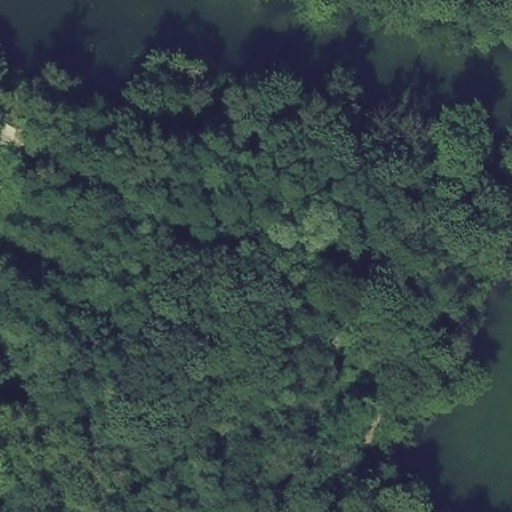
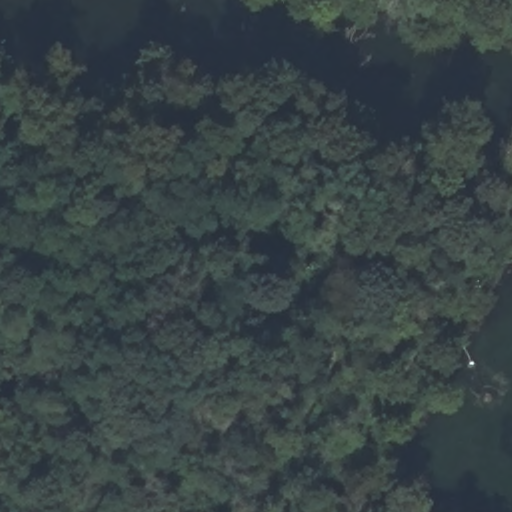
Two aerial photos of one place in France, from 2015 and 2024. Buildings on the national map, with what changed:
unchanged [(129,325),(216,239),(277,292),(260,327),(226,391),(328,477),(315,496),(206,424),(162,489),(0,489),(0,360),(94,357),(129,325)]

